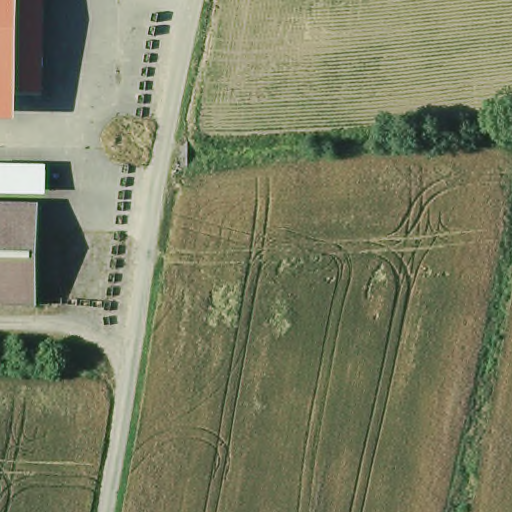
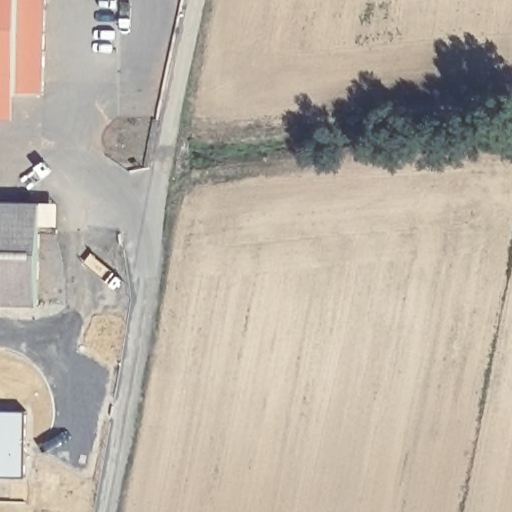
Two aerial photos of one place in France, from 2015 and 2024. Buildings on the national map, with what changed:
unchanged [(48,99),(15,101),(15,120),(0,119),(0,0),(47,0),(48,99)]
unchanged [(40,201),(38,311),(0,311),(0,200),(40,201)]
new [(24,410),(23,476),(0,476),(0,410),(24,410)]

